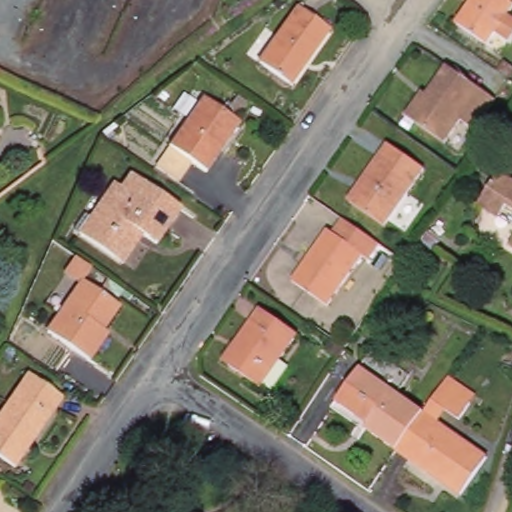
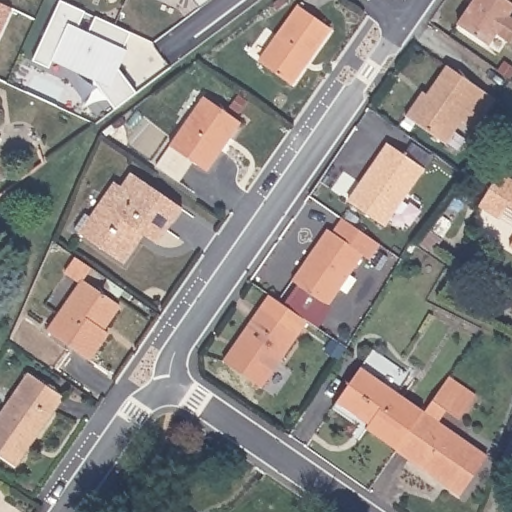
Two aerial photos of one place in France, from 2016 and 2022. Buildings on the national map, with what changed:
new [(199,9),(191,0),(211,0),(199,9)]
unchanged [(507,15),(512,19),(512,42),(510,44),(495,33),(487,45),(456,24),(473,0),(512,0),(512,9),(507,15)]
new [(122,64),(120,70),(125,77),(104,94),(94,80),(95,76),(75,67),(73,71),(53,62),(50,70),(34,62),(61,2),(85,14),(79,29),(90,34),(96,19),(131,34),(124,50),(128,51),(122,64)]
new [(0,4),(12,10),(0,35),(0,4)]
unchanged [(318,49),(313,45),(299,66),(303,69),(292,86),(260,66),(298,9),(331,28),(318,49)]
unchanged [(475,130),(462,121),(446,142),(408,115),(422,97),(426,100),(450,67),(497,100),(475,130)]
unchanged [(205,169),(167,145),(201,95),(239,120),(205,169)]
unchanged [(355,178),(380,145),(432,182),(411,213),(398,205),(382,227),(348,203),(342,199),(355,178)]
unchanged [(491,171),(512,181),(512,208),(502,204),(496,218),(473,207),(491,171)]
unchanged [(158,242),(145,233),(125,262),(75,227),(86,211),(91,215),(112,184),(120,190),(130,175),(181,210),(158,242)]
unchanged [(331,305),(295,279),(332,229),(336,231),(346,217),(382,243),(373,257),(368,254),(331,305)]
unchanged [(509,245),(512,238),(512,246),(509,245)]
unchanged [(139,298),(136,302),(125,294),(122,297),(105,285),(110,278),(139,298)]
unchanged [(90,362),(48,333),(85,281),(114,301),(120,305),(102,330),(109,334),(90,362)]
unchanged [(260,385),(224,360),(261,306),(298,331),(260,385)]
unchanged [(395,449),(394,450),(332,406),(358,367),(371,350),(408,376),(396,393),(421,411),(395,449)]
unchanged [(0,455),(0,414),(30,372),(65,396),(14,465),(0,455)]
unchanged [(458,495),(394,450),(395,449),(421,411),(422,410),(447,374),(475,393),(469,400),(451,388),(440,403),(446,407),(437,420),(485,453),(458,495)]

